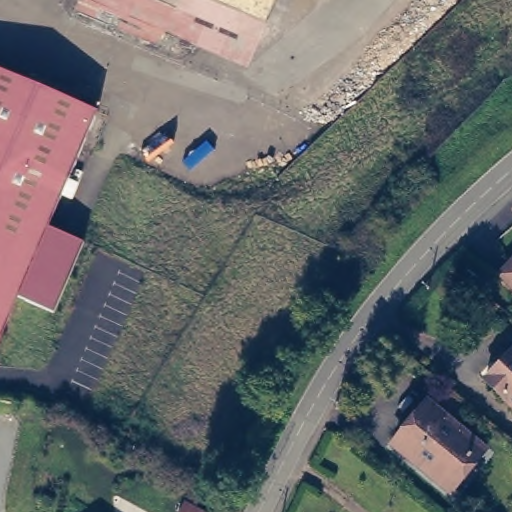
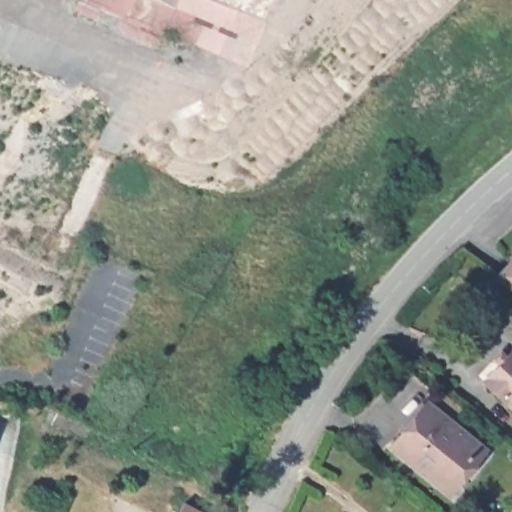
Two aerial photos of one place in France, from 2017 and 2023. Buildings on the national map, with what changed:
demolished [(80,6),(82,0),(182,0),(163,43),(80,6)]
demolished [(229,0),(277,0),(270,17),(229,0)]
demolished [(95,108),(83,135),(67,128),(45,118),(5,103),(0,113),(0,67),(95,108)]
demolished [(5,103),(45,118),(0,186),(0,113),(5,103)]
demolished [(47,223),(37,247),(18,292),(0,335),(0,186),(45,118),(67,128),(83,135),(47,223)]
demolished [(37,247),(72,262),(56,310),(18,292),(37,247)]
unchanged [(512,254),(512,284),(497,270),(512,254)]
unchanged [(512,347),(512,401),(485,376),(512,347)]
unchanged [(445,492),(407,460),(388,445),(422,404),(475,447),(479,451),(445,492)]
unchanged [(183,503),(201,512),(179,512),(183,503)]

